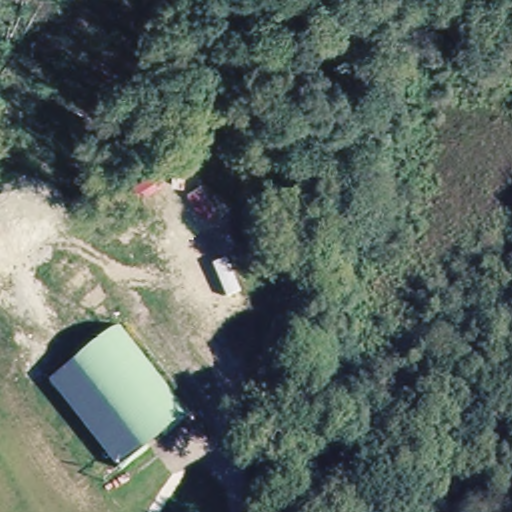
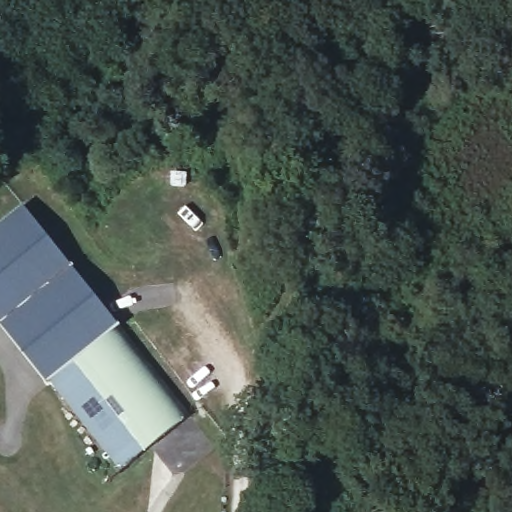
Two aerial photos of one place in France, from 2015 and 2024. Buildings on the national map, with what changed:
new [(46,378),(0,322),(0,224),(23,205),(116,324),(46,378)]
unchanged [(185,413),(115,467),(46,378),(116,324),(185,413)]

